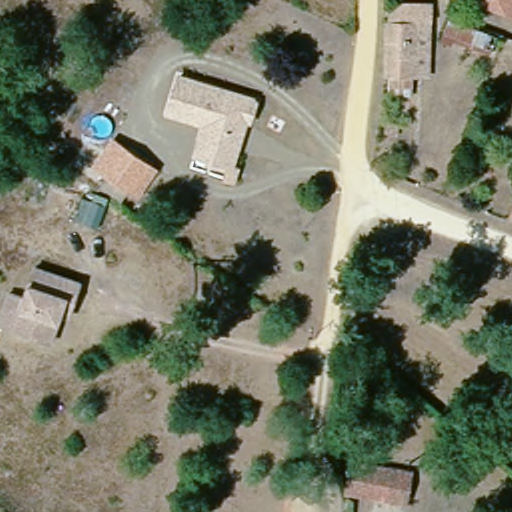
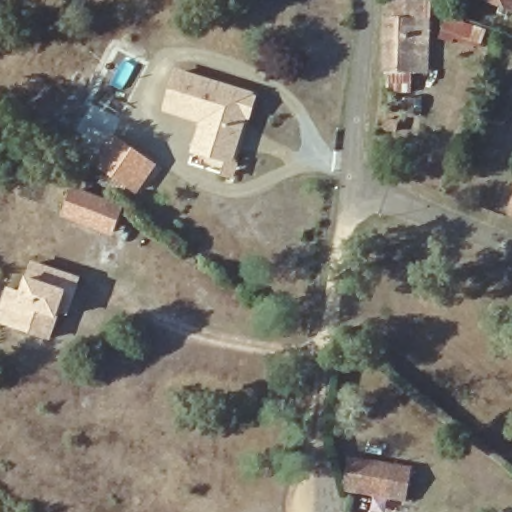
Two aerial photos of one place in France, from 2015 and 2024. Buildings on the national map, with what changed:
unchanged [(512,8),(485,0),(512,0),(512,8)]
unchanged [(386,16),(428,15),(430,83),(410,82),(408,35),(386,34),(386,16)]
unchanged [(408,35),(410,82),(385,82),(385,34),(386,34),(408,35)]
unchanged [(204,136),(207,124),(207,122),(170,110),(182,74),(255,97),(244,132),(235,163),(216,157),(199,152),(204,136)]
unchanged [(130,188),(101,167),(119,143),(147,163),(130,188)]
new [(114,235),(63,217),(73,188),(124,208),(114,235)]
demolished [(100,215),(86,211),(95,189),(107,193),(100,215)]
unchanged [(5,299),(10,285),(29,291),(39,261),(82,274),(74,299),(71,309),(62,306),(52,334),(15,322),(0,317),(5,299)]
unchanged [(330,459),(450,479),(447,502),(430,499),(430,506),(326,489),(330,459)]

